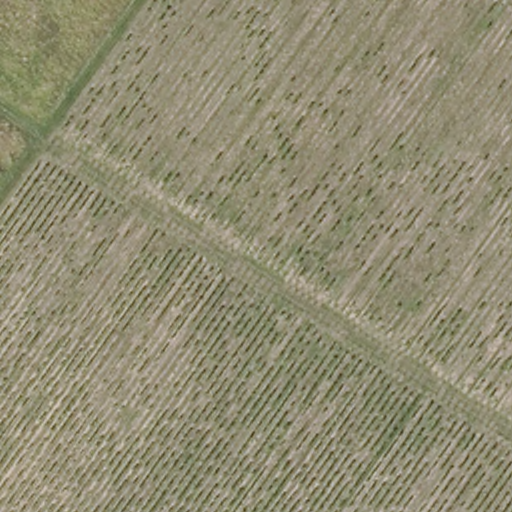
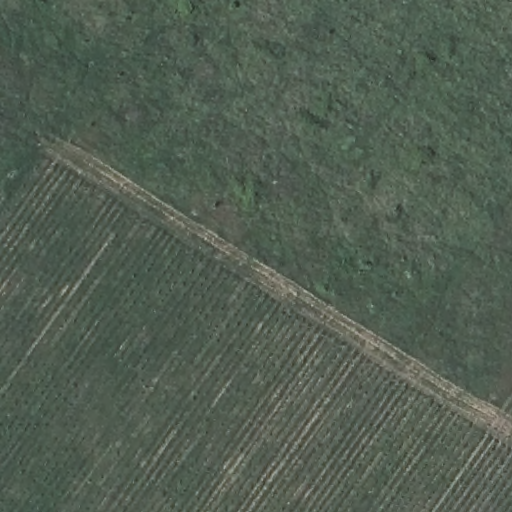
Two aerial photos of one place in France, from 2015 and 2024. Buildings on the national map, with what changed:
[]

